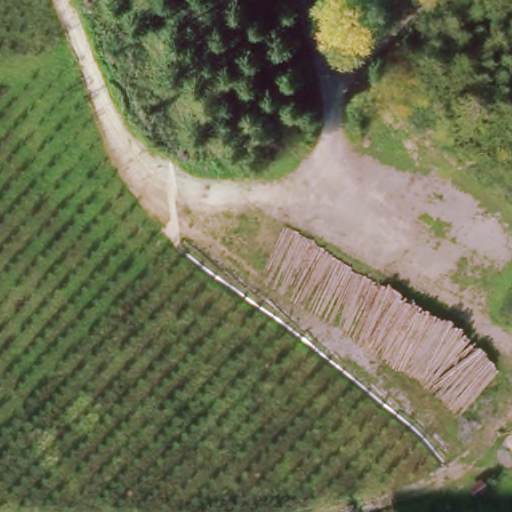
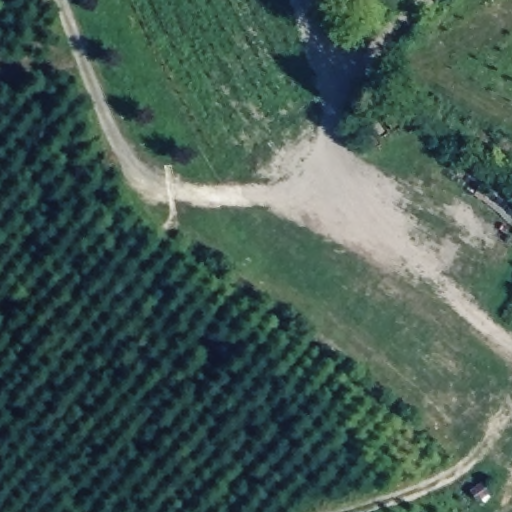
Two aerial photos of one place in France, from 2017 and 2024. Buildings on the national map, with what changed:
[]

